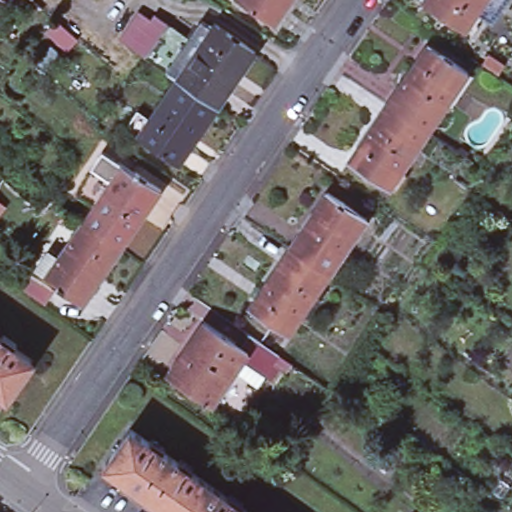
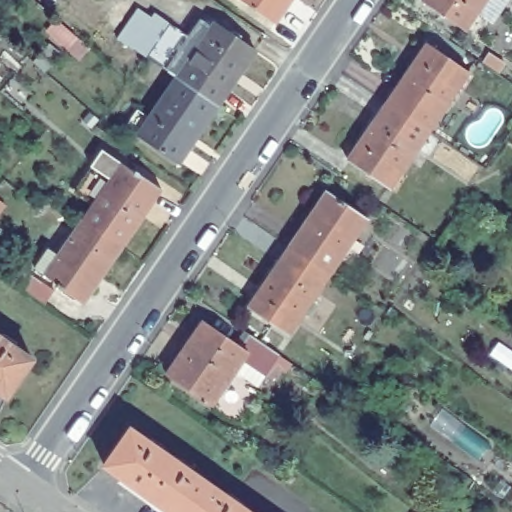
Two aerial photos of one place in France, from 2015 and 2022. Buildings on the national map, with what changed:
unchanged [(286,6),(281,3),(272,18),(276,20),(275,22),(242,0),(290,0),(286,6)]
unchanged [(465,28),(423,0),(427,0),(428,0),(504,0),(491,20),(485,15),(474,32),(466,26),(465,28)]
unchanged [(149,19),(154,12),(173,26),(151,60),(118,38),(138,10),(149,19)]
unchanged [(187,35),(199,18),(208,24),(218,31),(221,26),(261,54),(223,110),(183,81),(151,60),(173,26),(187,35)]
unchanged [(428,129),(388,101),(417,60),(420,61),(430,46),(427,45),(428,42),(468,70),(428,129)]
unchanged [(143,112),(156,120),(183,81),(223,110),(196,150),(191,148),(182,162),(186,165),(184,167),(143,139),(131,130),(143,112)]
unchanged [(428,129),(389,186),(349,159),(349,157),(352,159),(361,146),(359,144),(388,101),(428,129)]
unchanged [(128,245),(107,230),(90,219),(118,176),(99,162),(108,148),(128,161),(167,187),(166,189),(158,201),(128,245)]
unchanged [(329,277),(290,250),(301,235),(304,236),(309,229),(306,226),(328,195),(366,221),(329,277)]
unchanged [(66,254),(90,219),(107,230),(128,245),(98,288),(95,286),(86,298),(90,300),(88,302),(61,285),(63,283),(40,267),(55,246),(66,254)]
unchanged [(287,338),(249,311),(290,250),(329,277),(287,338)]
unchanged [(243,332),(247,335),(274,353),(266,366),(243,350),(208,403),(162,373),(177,351),(179,353),(201,323),(197,321),(198,320),(235,345),(243,332)]
unchanged [(35,363),(8,401),(0,395),(0,339),(35,363)]
unchanged [(185,512),(168,512),(100,464),(125,427),(205,483),(185,512)]
unchanged [(246,512),(185,512),(205,483),(246,512)]

